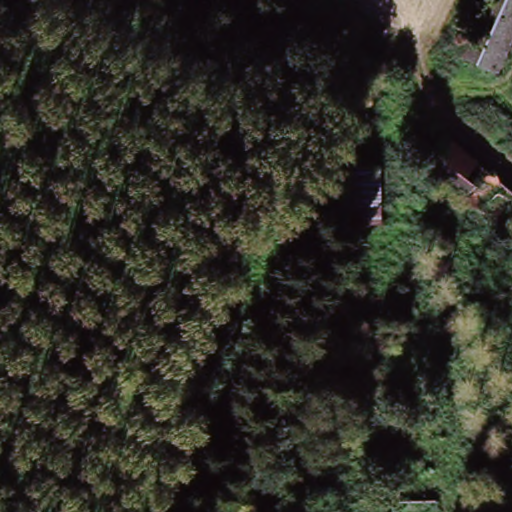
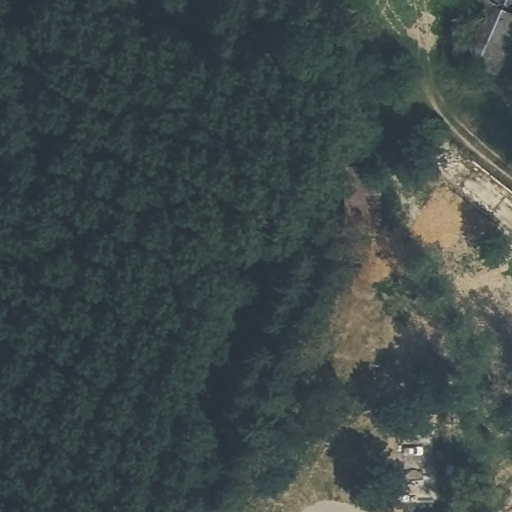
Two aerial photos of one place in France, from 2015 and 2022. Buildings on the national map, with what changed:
unchanged [(457,54),(482,0),(512,0),(512,37),(497,72),(457,54)]
unchanged [(446,151),(512,203),(512,245),(425,177),(446,151)]
unchanged [(336,174),(377,173),(378,226),(349,226),(349,193),(336,193),(336,174)]

